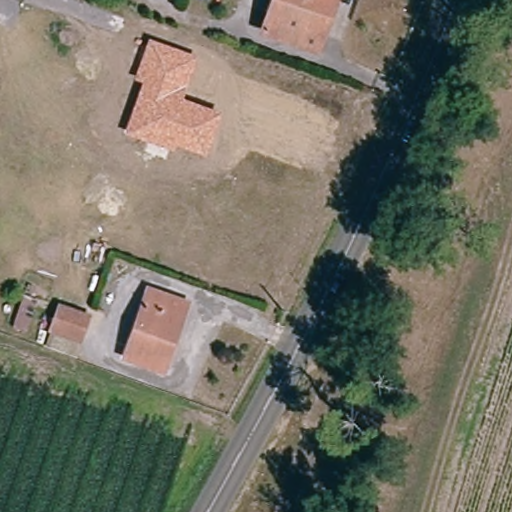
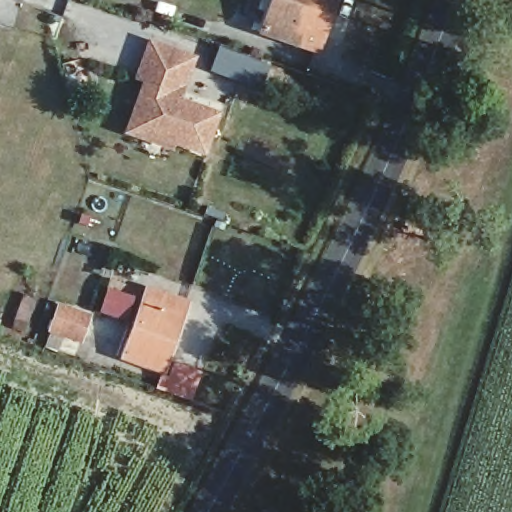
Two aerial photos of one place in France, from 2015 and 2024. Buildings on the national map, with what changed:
unchanged [(317,52),(262,33),(273,0),(334,0),(317,52)]
unchanged [(198,56),(183,99),(223,114),(207,158),(176,147),(174,152),(124,134),(141,82),(134,79),(148,39),(198,56)]
new [(210,72),(219,46),(266,63),(257,89),(210,72)]
unchanged [(147,297),(185,310),(162,377),(124,364),(147,297)]
unchanged [(41,353),(47,339),(44,338),(53,312),(84,323),(74,349),(69,364),(41,353)]

